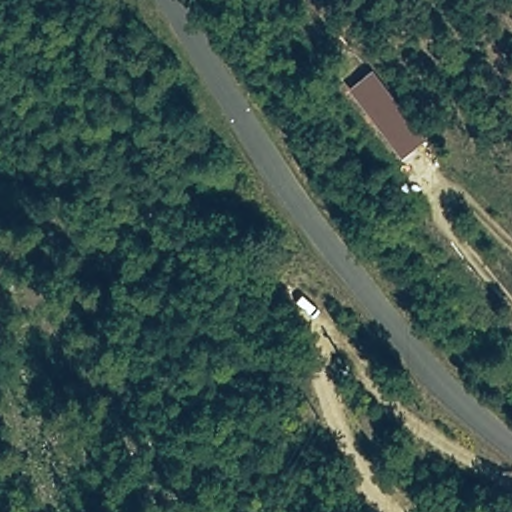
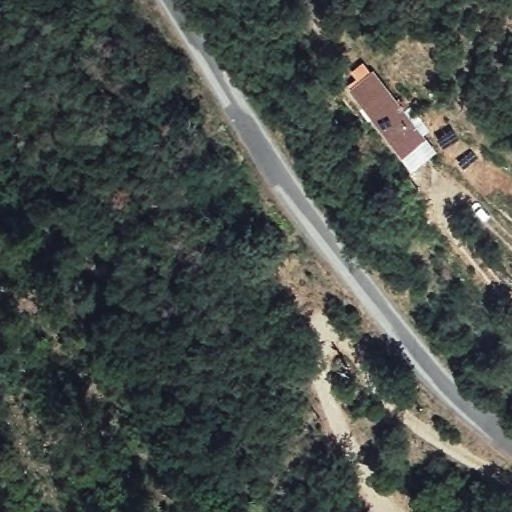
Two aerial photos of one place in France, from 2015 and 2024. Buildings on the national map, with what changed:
unchanged [(372,72),(425,142),(401,158),(350,89),(372,72)]

